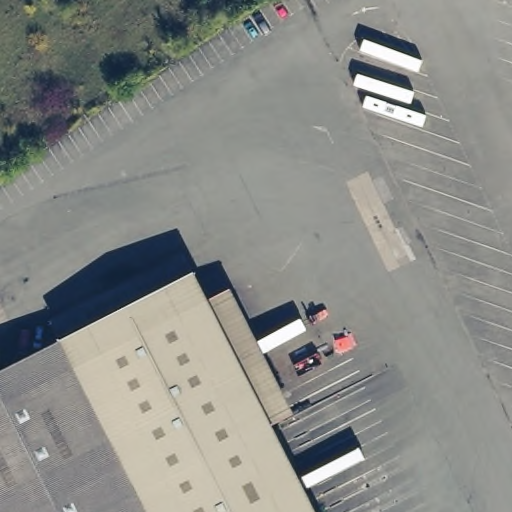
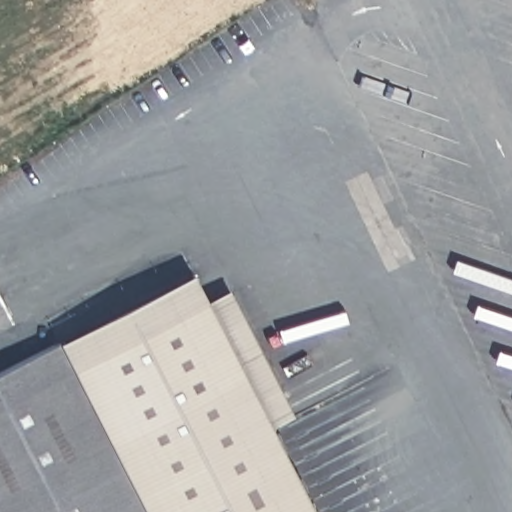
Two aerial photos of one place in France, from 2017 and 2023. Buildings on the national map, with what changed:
unchanged [(61,340),(196,271),(210,296),(75,366),(61,340)]
unchanged [(210,296),(231,289),(289,412),(273,420),(210,296)]
unchanged [(210,296),(273,420),(320,512),(148,512),(75,366),(210,296)]
unchanged [(61,340),(75,366),(148,512),(0,512),(0,371),(61,340)]

